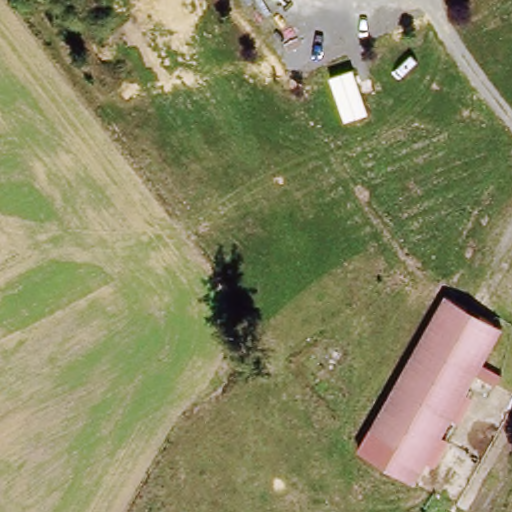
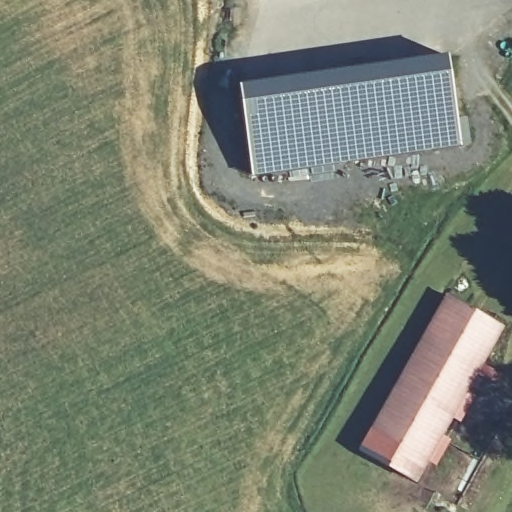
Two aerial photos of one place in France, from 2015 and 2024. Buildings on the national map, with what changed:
new [(450,57),(458,120),(466,119),(470,146),(253,176),(241,87),(450,57)]
unchanged [(415,478),(358,446),(444,291),(501,324),(415,478)]

